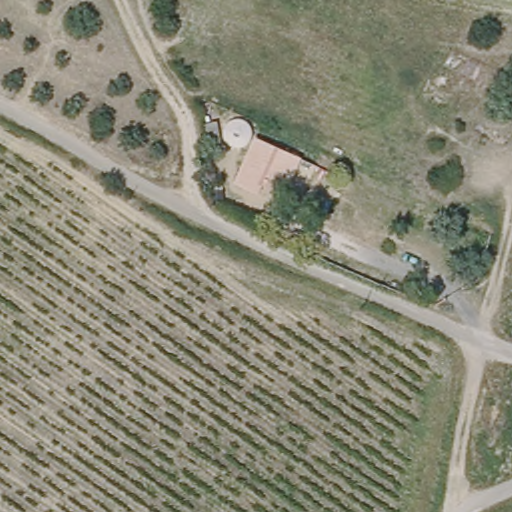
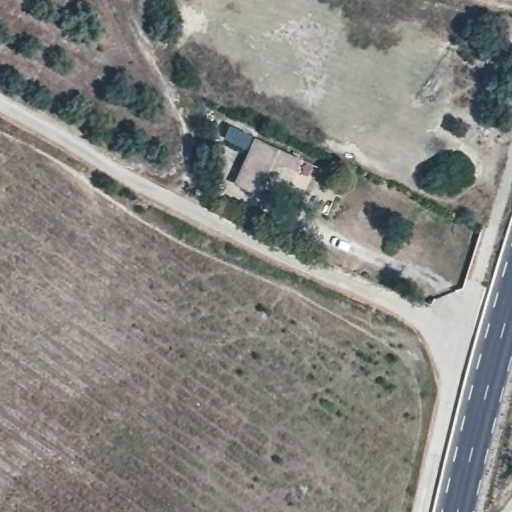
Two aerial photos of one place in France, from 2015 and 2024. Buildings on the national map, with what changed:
unchanged [(186,91),(198,88),(201,107),(191,109),(186,91)]
unchanged [(307,160),(289,191),(267,181),(262,190),(240,179),(263,136),(307,160)]

